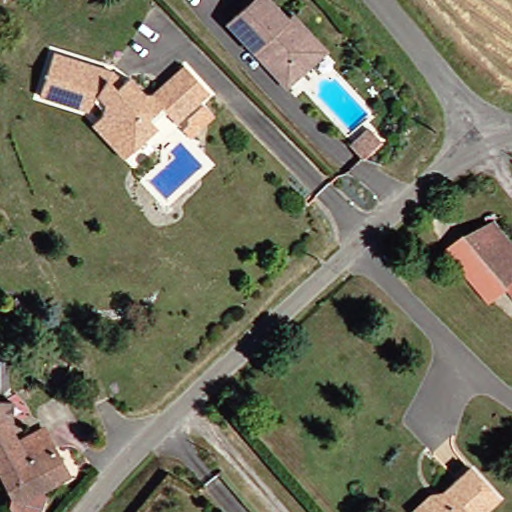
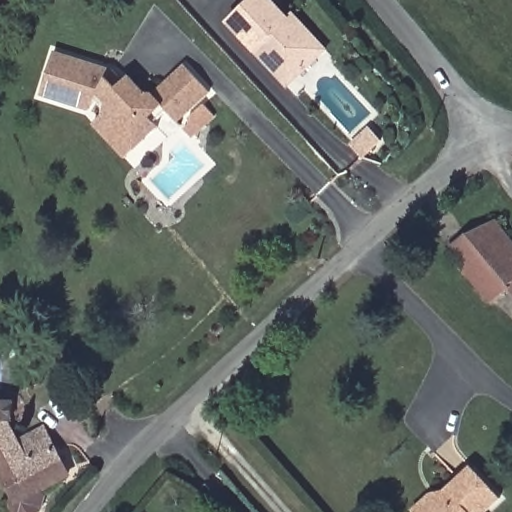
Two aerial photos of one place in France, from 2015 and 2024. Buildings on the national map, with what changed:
unchanged [(223,23),(249,0),(264,0),(282,20),(287,15),(321,52),(312,59),(282,87),(257,60),(249,52),(223,23)]
unchanged [(93,129),(102,120),(102,108),(94,99),(81,112),(32,97),(46,54),(105,72),(117,84),(123,79),(139,96),(147,96),(179,67),(205,94),(172,123),(157,107),(145,119),(154,128),(130,150),(121,158),(93,129)]
unchanged [(179,130),(185,125),(184,119),(199,105),(210,117),(187,139),(179,130)]
unchanged [(368,141),(380,153),(362,170),(350,157),(368,141)]
unchanged [(512,302),(505,293),(465,242),(492,226),(512,250),(512,302)]
unchanged [(505,293),(483,304),(442,254),(465,242),(505,293)]
unchanged [(5,421),(0,421),(0,401),(6,401),(5,421)]
unchanged [(61,476),(32,490),(36,496),(32,510),(30,512),(9,512),(5,504),(10,502),(0,484),(0,423),(10,442),(36,429),(61,476)]
unchanged [(427,493),(435,504),(441,499),(437,492),(465,469),(495,504),(486,512),(413,512),(410,508),(427,493)]

